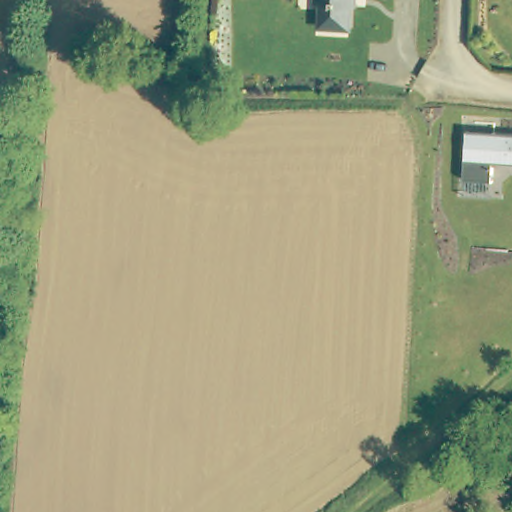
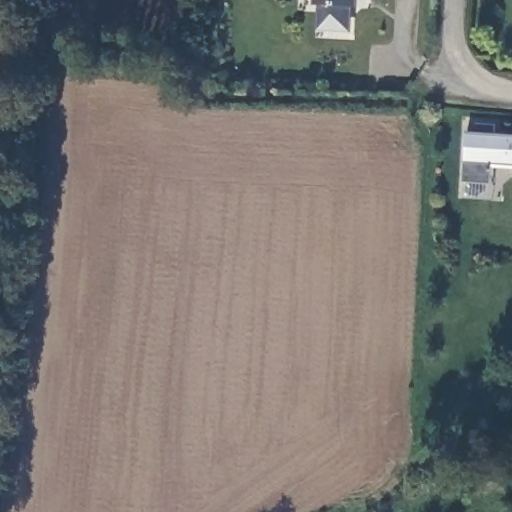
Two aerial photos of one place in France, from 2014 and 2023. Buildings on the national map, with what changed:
unchanged [(346,5),(345,26),(317,24),(319,2),(315,2),(315,0),(352,0),(352,6),(346,5)]
unchanged [(492,183),(462,181),(466,132),(512,135),(512,164),(492,162),(492,183)]

